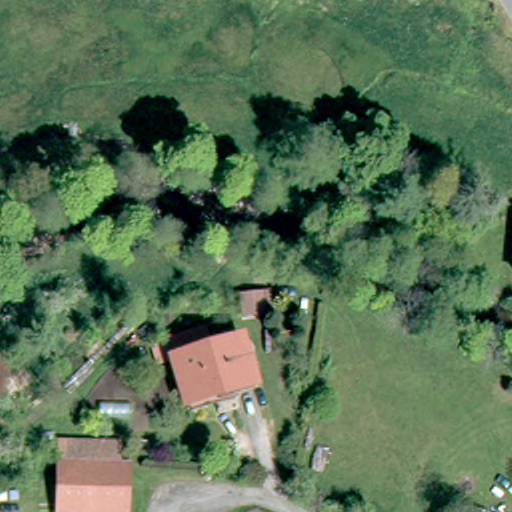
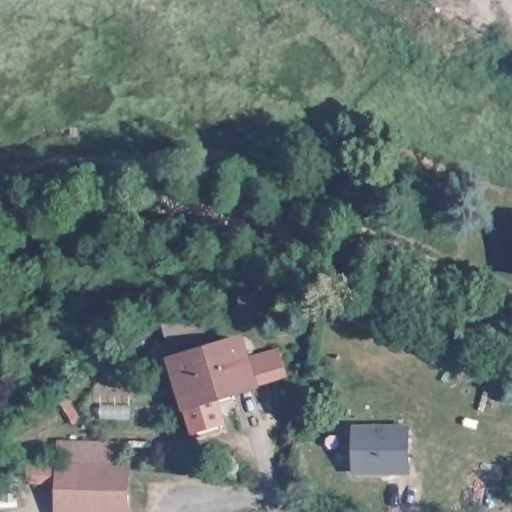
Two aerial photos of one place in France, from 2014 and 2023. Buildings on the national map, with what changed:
unchanged [(217,300),(237,294),(242,310),(222,317),(217,300)]
unchanged [(254,393),(187,412),(175,368),(177,368),(172,350),(203,341),(208,358),(240,348),(254,393)]
new [(385,432),(409,432),(409,436),(409,477),(359,476),(354,471),(354,432),(385,432)]
unchanged [(83,512),(60,512),(60,459),(83,459),(83,512)]
unchanged [(83,459),(130,460),(131,512),(83,512),(83,459)]

